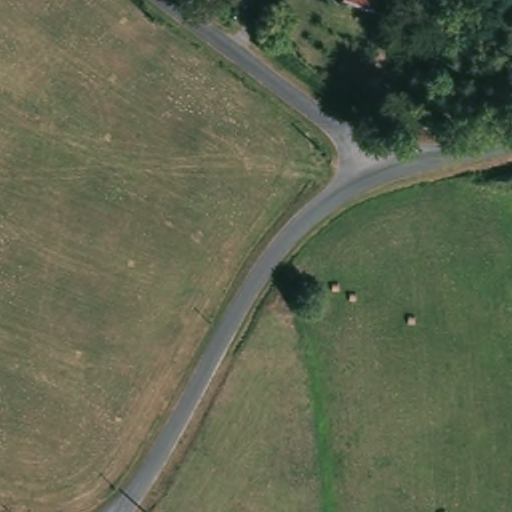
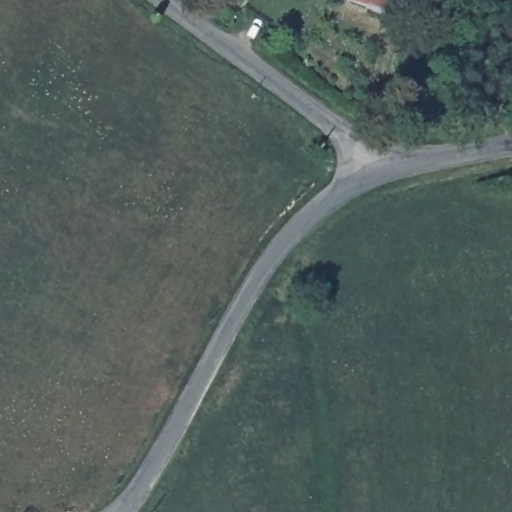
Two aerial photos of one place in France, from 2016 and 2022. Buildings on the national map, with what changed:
unchanged [(339,1),(340,0),(395,0),(386,21),(339,1)]

